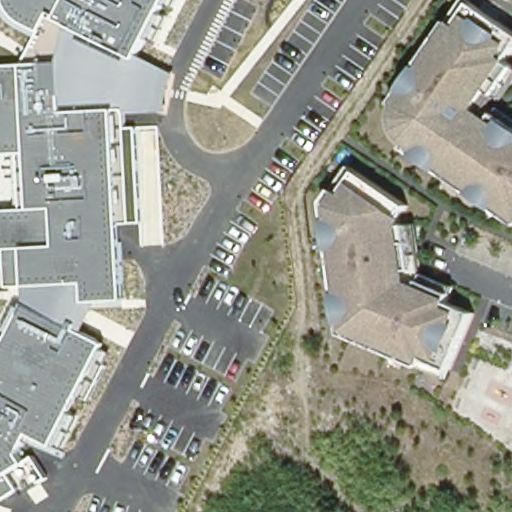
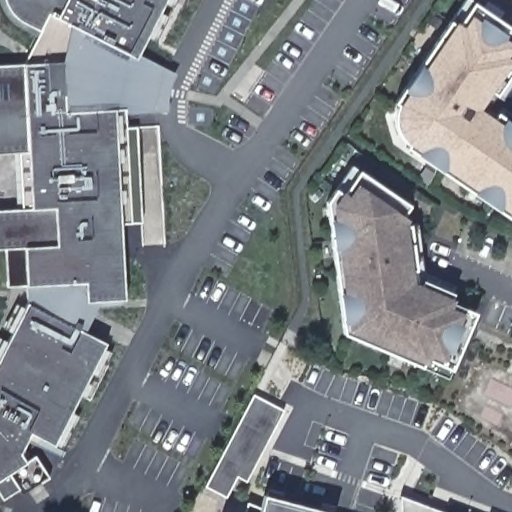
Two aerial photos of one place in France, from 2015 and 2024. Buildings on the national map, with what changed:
unchanged [(177,75),(167,112),(130,115),(132,129),(141,129),(145,225),(119,227),(124,304),(100,306),(87,332),(109,345),(55,449),(28,436),(24,447),(33,459),(12,473),(20,492),(4,502),(0,495),(0,349),(22,303),(25,304),(24,286),(9,288),(6,249),(0,249),(0,211),(22,210),(20,153),(0,154),(0,63),(24,62),(37,36),(22,29),(12,22),(2,8),(0,0),(166,0),(139,55),(177,75)]
unchanged [(407,84),(412,88),(441,47),(435,43),(451,20),(458,25),(475,1),(512,27),(512,56),(509,60),(512,62),(512,74),(497,95),(490,90),(475,111),(491,122),(498,112),(512,122),(512,218),(506,214),(510,208),(470,180),(466,186),(407,145),(412,136),(412,135),(411,135),(410,134),(409,134),(409,133),(408,133),(407,132),(407,131),(406,131),(406,130),(405,130),(405,129),(405,128),(404,128),(404,127),(403,126),(403,125),(402,125),(402,124),(402,123),(402,122),(402,121),(402,120),(402,119),(402,118),(402,117),(402,116),(402,115),(402,114),(402,113),(402,112),(402,111),(403,111),(403,110),(403,109),(404,109),(404,108),(405,108),(405,107),(395,100),(407,84)]
unchanged [(377,342),(360,335),(357,341),(343,335),(340,321),(347,320),(345,301),(338,302),(331,229),(337,229),(336,208),(328,209),(327,201),(336,189),(344,194),(360,171),(411,207),(403,218),(404,228),(411,227),(416,274),(408,275),(410,284),(420,288),(423,282),(453,295),(450,304),(477,315),(452,372),(425,360),(421,369),(375,349),(377,342)]
new [(248,480),(238,474),(226,499),(206,488),(255,395),(284,411),(248,480)]
new [(263,495),(329,512),(258,512),(263,495)]
new [(400,497),(443,512),(400,512),(400,497)]

